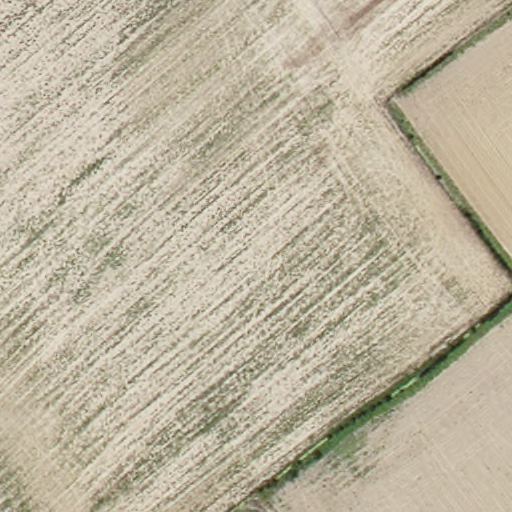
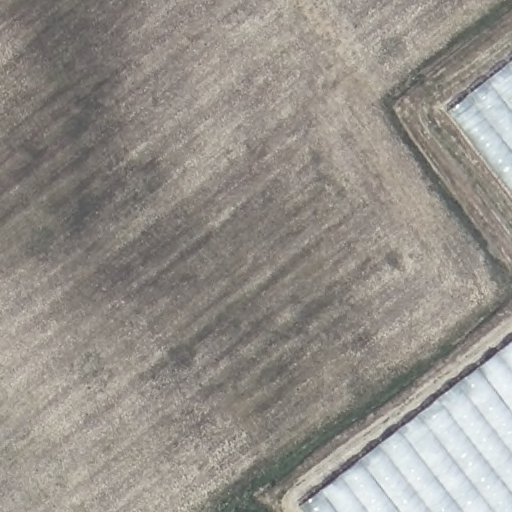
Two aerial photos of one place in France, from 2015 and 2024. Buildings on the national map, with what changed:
new [(512,60),(512,201),(445,113),(512,60)]
new [(512,341),(512,512),(308,512),(302,504),(512,341)]

